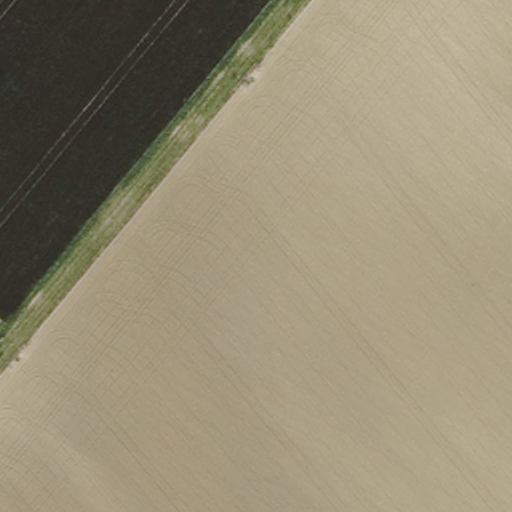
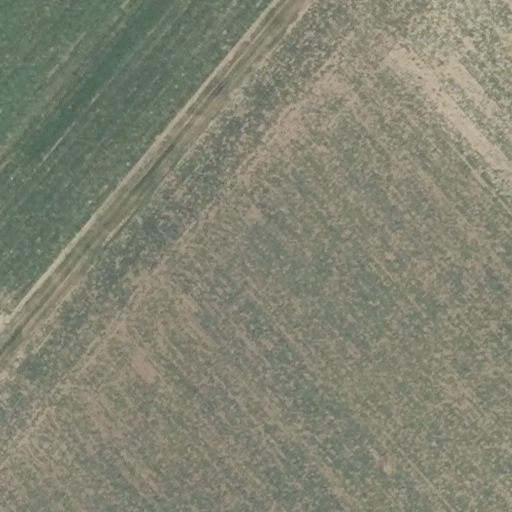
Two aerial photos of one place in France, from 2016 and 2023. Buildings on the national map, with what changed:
[]

